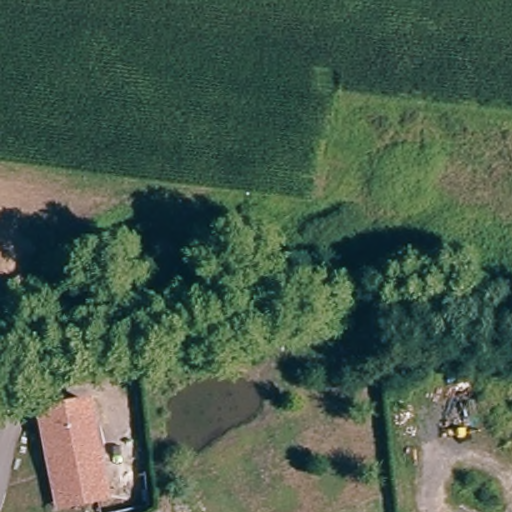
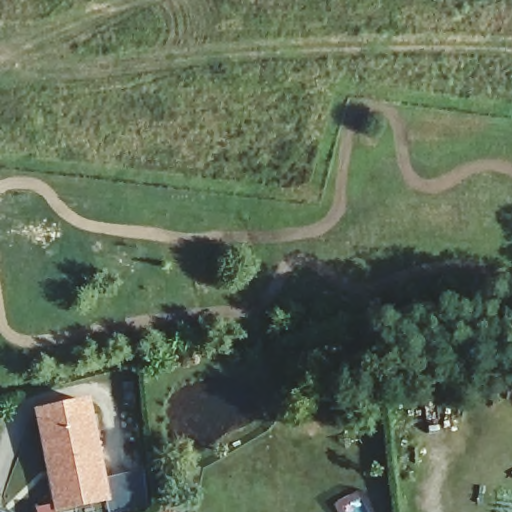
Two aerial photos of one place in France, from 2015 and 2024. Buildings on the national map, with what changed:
unchanged [(60,511),(56,496),(37,414),(85,402),(105,485),(108,500),(60,511)]

